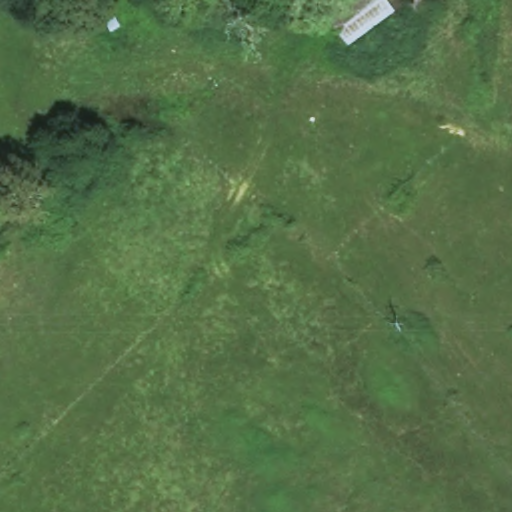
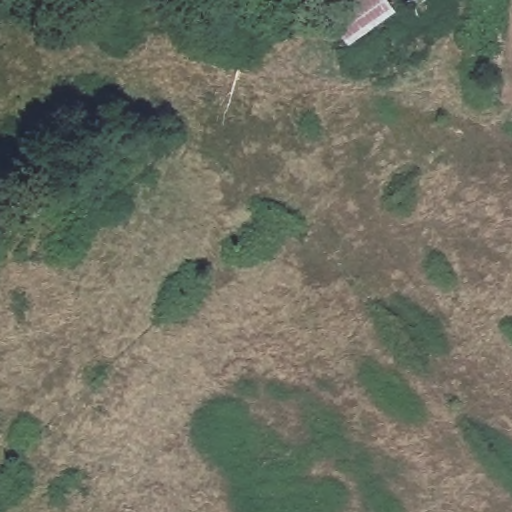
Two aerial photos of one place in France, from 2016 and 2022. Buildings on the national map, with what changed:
unchanged [(391,10),(336,41),(312,0),(385,0),(391,10)]

